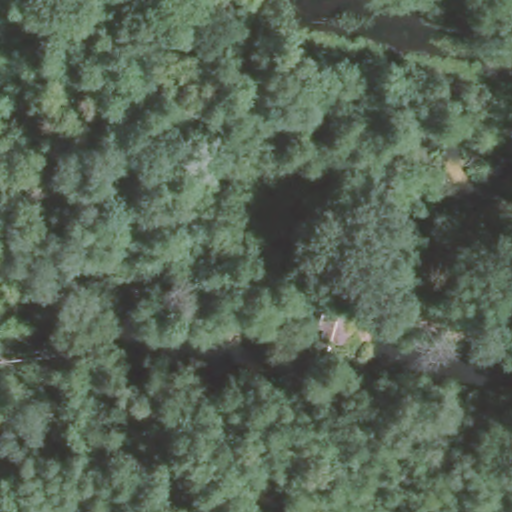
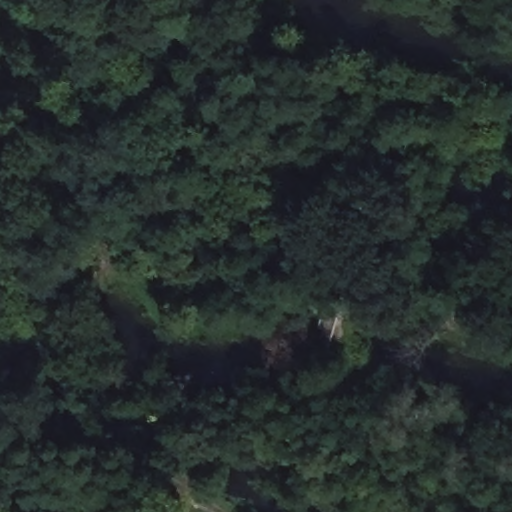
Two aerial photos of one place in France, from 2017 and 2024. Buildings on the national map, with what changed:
unchanged [(346,335),(326,331),(327,313),(349,315),(346,335)]

